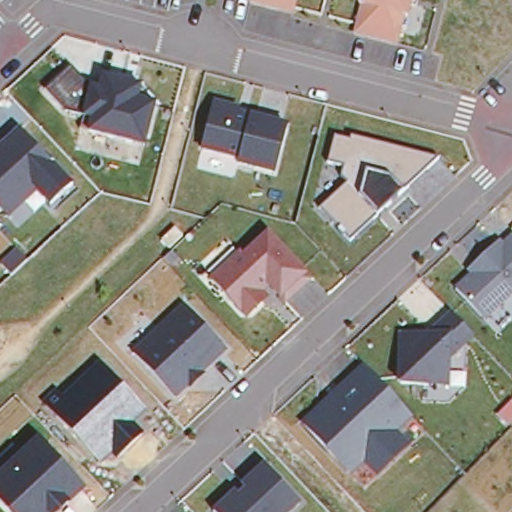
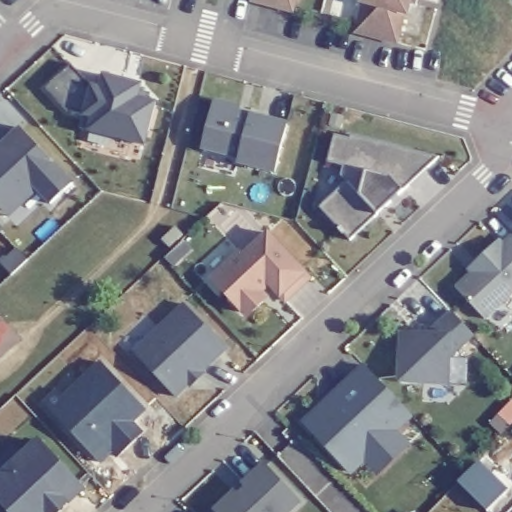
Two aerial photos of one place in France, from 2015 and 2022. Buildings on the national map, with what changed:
unchanged [(252,3),(252,0),(297,0),(294,14),(252,3)]
unchanged [(405,16),(398,45),(356,34),(364,5),(360,4),(362,0),(413,0),(409,17),(405,16)]
unchanged [(134,139),(102,131),(90,128),(81,126),(85,112),(67,108),(45,85),(65,54),(72,61),(104,72),(142,82),(139,93),(139,95),(157,100),(149,130),(145,142),(134,139)]
unchanged [(235,166),(235,162),(200,152),(212,104),(287,124),(275,173),(235,166)]
unchanged [(20,125),(22,124),(74,181),(52,201),(48,198),(38,186),(22,201),(17,195),(3,208),(0,205),(0,144),(20,125)]
unchanged [(325,199),(345,181),(340,174),(343,164),(327,160),(334,133),(350,137),(350,133),(439,155),(385,205),(378,211),(350,238),(332,219),(320,205),(325,199)]
unchanged [(177,229),(184,237),(170,249),(163,242),(177,229)]
unchanged [(252,310),(244,310),(240,305),(225,289),(214,278),(212,276),(241,249),(242,250),(245,253),(269,231),(290,254),(310,275),(285,298),(275,288),(264,299),(252,310)]
unchanged [(512,241),(512,297),(485,321),(457,291),(474,276),(470,272),(477,265),(501,244),(504,248),(512,241)]
unchanged [(197,383),(194,381),(180,394),(140,350),(126,335),(152,311),(165,325),(190,301),(232,346),(207,369),(210,371),(197,383)]
unchanged [(462,320),(475,333),(454,352),(450,355),(450,357),(450,382),(402,380),(399,377),(401,330),(430,331),(438,323),(453,310),(462,320)]
unchanged [(97,359),(147,411),(135,425),(144,435),(117,461),(110,456),(99,467),(45,408),(97,359)]
unchanged [(379,469),(365,454),(350,468),(305,419),(321,403),(348,378),(365,362),(411,411),(394,427),(407,442),(379,469)]
unchanged [(4,476),(39,444),(83,492),(67,507),(63,502),(53,512),(9,512),(0,502),(0,480),(4,476)]
new [(480,460),(507,488),(486,509),(459,481),(480,460)]
unchanged [(262,463),(300,505),(293,512),(213,512),(212,510),(262,463)]

